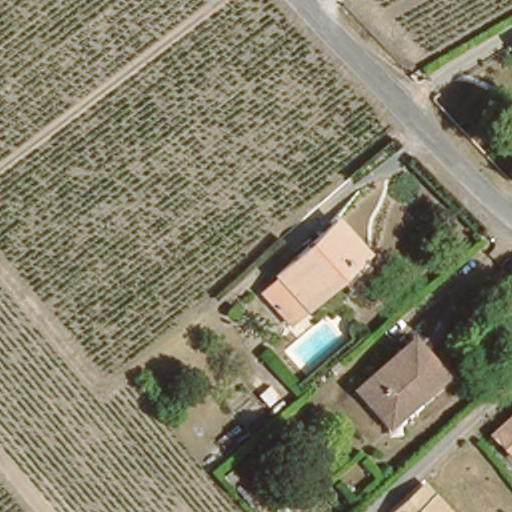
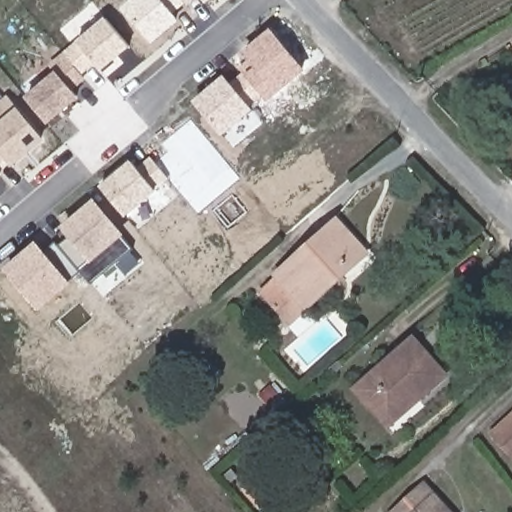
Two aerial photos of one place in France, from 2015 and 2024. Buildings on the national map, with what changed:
new [(179,22),(153,44),(122,8),(131,0),(192,0),(174,14),(179,22)]
new [(203,0),(209,0),(206,3),(203,0)]
new [(102,70),(97,65),(84,75),(86,80),(74,90),(80,98),(49,124),(25,96),(54,72),(49,65),(78,40),(106,17),(130,47),(102,70)]
new [(193,101),(224,75),(232,83),(244,73),(241,68),(250,60),(243,52),(272,29),(305,71),(267,102),(263,96),(250,105),(253,110),(222,136),(193,101)]
new [(13,168),(7,160),(0,165),(0,101),(8,94),(18,107),(45,140),(13,168)]
new [(156,163),(169,152),(162,144),(191,120),(239,179),(199,213),(170,179),(156,163)]
new [(100,186),(131,160),(138,168),(151,156),(156,163),(170,179),(157,191),(126,217),(100,186)]
new [(2,177),(0,178),(0,175),(2,177)]
new [(71,283),(72,284),(39,312),(3,269),(37,241),(45,251),(56,242),(59,245),(69,238),(61,228),(96,199),(125,234),(122,237),(132,249),(91,284),(83,273),(71,283)]
unchanged [(290,328),(257,292),(275,276),(271,270),(340,211),(374,254),(290,328)]
unchanged [(384,419),(358,389),(415,339),(447,377),(420,400),(390,426),(384,419)]
unchanged [(492,431),(512,413),(512,451),(511,452),(492,431)]
unchanged [(451,512),(391,512),(423,482),(451,512)]

